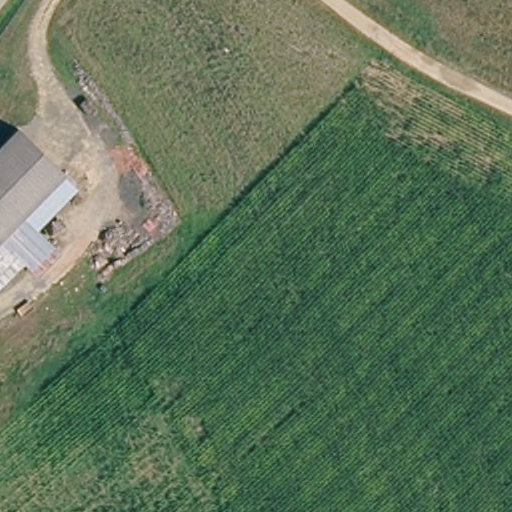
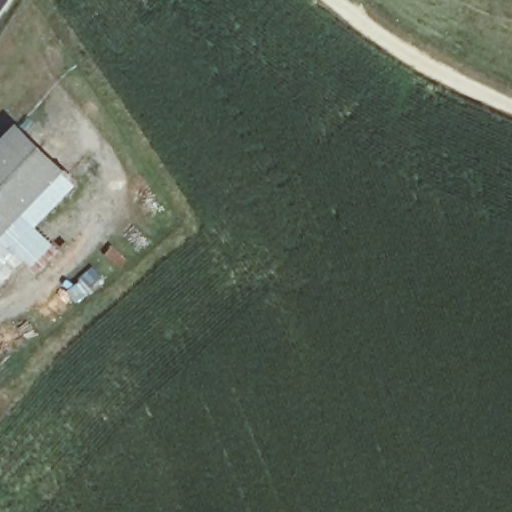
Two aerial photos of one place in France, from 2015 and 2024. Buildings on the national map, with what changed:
unchanged [(21,127),(67,175),(81,187),(40,231),(61,254),(39,277),(26,265),(0,291),(0,148),(21,127)]

